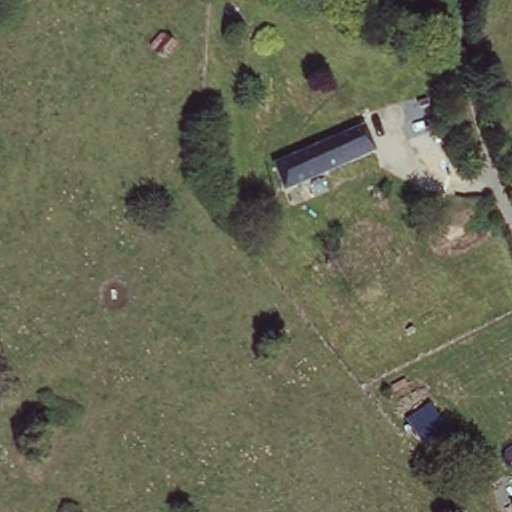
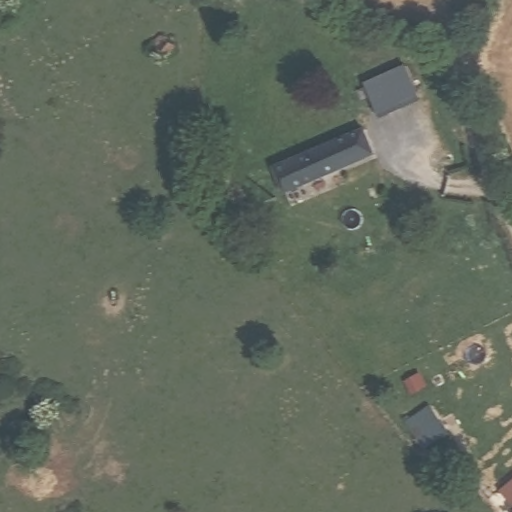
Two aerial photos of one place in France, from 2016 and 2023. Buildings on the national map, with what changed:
unchanged [(163,58),(151,45),(163,32),(176,44),(163,58)]
new [(416,60),(430,91),(379,113),(366,81),(416,60)]
unchanged [(287,193),(272,155),(290,147),(295,160),(362,132),(371,158),(287,193)]
unchanged [(430,403),(455,439),(431,456),(407,421),(430,403)]
unchanged [(510,509),(512,508),(512,511),(510,509)]

